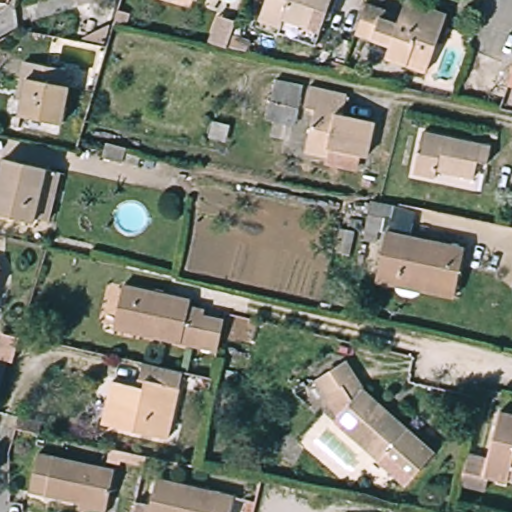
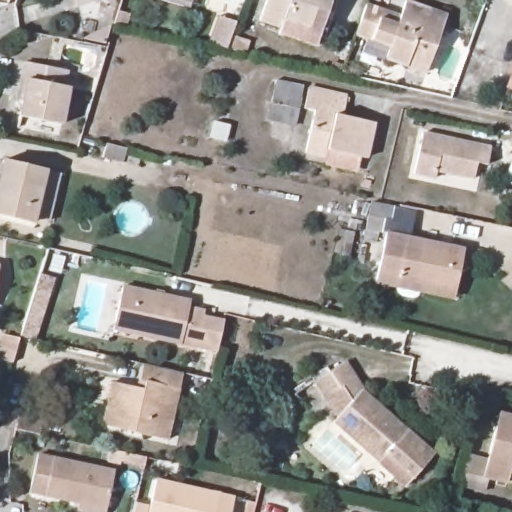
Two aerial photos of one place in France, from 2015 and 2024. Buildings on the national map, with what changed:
unchanged [(272,31),(273,27),(254,20),(261,0),(326,0),(316,31),(310,45),(272,31)]
unchanged [(404,17),(410,3),(448,16),(426,72),(387,58),(390,48),(359,37),(370,7),(404,17)]
unchanged [(237,54),(224,52),(205,48),(215,17),(233,25),(229,38),(241,44),(237,54)]
unchanged [(64,65),(61,81),(68,81),(60,120),(19,114),(27,73),(18,71),(22,56),(64,65)]
unchanged [(310,89),(304,110),(296,108),(292,120),(268,114),(276,81),(310,89)]
unchanged [(346,97),(343,115),(373,121),(365,155),(333,148),(329,159),(309,152),(316,114),(304,110),(310,89),(346,97)]
unchanged [(491,146),(487,162),(477,162),(474,177),(437,168),(435,177),(413,172),(423,131),(491,146)]
unchanged [(4,160),(41,168),(29,223),(0,218),(0,177),(4,160)]
unchanged [(391,209),(390,220),(383,217),(379,232),(363,228),(368,205),(391,209)]
unchanged [(464,247),(455,292),(395,281),(393,292),(373,289),(385,232),(464,247)]
unchanged [(110,321),(120,286),(182,301),(181,307),(222,317),(212,358),(135,338),(107,332),(110,321)]
unchanged [(17,335),(11,359),(0,358),(0,336),(1,332),(17,335)]
unchanged [(309,383),(340,361),(353,379),(361,387),(405,424),(377,462),(334,426),(339,416),(325,403),(321,399),(313,388),(309,383)]
unchanged [(184,373),(169,437),(106,423),(115,382),(141,388),(147,365),(184,373)]
unchanged [(505,484),(485,479),(482,492),(458,486),(465,456),(486,461),(497,412),(512,416),(512,479),(507,477),(505,484)]
unchanged [(437,453),(408,487),(377,462),(405,424),(437,453)]
unchanged [(76,499),(29,490),(37,455),(111,471),(104,506),(102,512),(87,512),(73,509),(76,499)]
unchanged [(228,512),(145,512),(153,477),(232,495),(228,512)]
unchanged [(140,509),(139,512),(129,512),(130,507),(131,507),(140,509)]

